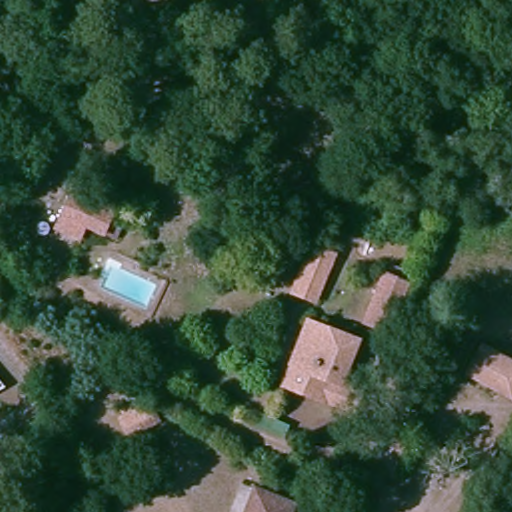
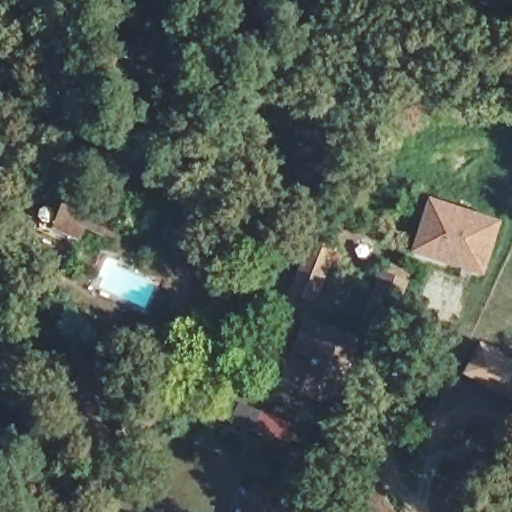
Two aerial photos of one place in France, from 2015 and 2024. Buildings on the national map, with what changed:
unchanged [(112,233),(95,224),(87,238),(66,226),(86,186),(126,206),(112,233)]
new [(412,251),(432,197),(505,219),(486,275),(412,251)]
demolished [(487,221),(481,240),(442,226),(449,209),(487,221)]
unchanged [(297,296),(298,294),(317,247),(339,257),(319,306),(297,296)]
unchanged [(391,334),(367,323),(390,271),(413,285),(391,334)]
unchanged [(334,403),(283,380),(291,366),(309,324),(357,346),(373,355),(357,395),(350,409),(334,403)]
unchanged [(512,359),(512,396),(471,375),(484,344),(512,359)]
unchanged [(0,390),(0,378),(7,386),(0,390)]
unchanged [(296,504),(293,512),(248,512),(258,487),(296,504)]
new [(397,512),(377,512),(372,505),(386,495),(397,512)]

